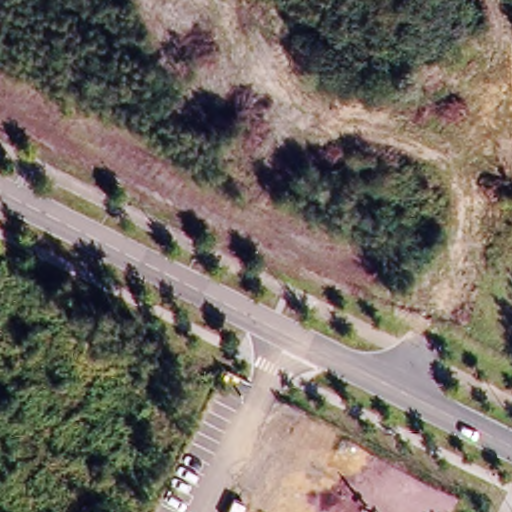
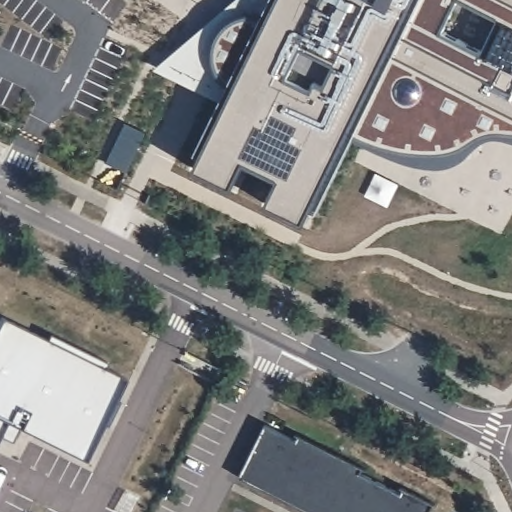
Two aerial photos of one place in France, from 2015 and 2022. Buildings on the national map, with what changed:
new [(512,132),(502,132),(492,133),(477,142),(461,151),(437,154),(410,153),(387,149),(366,142),(350,131),(306,221),(269,202),(282,177),(247,161),(233,186),(197,167),(227,104),(155,69),(236,0),(456,0),(441,31),(483,52),(501,16),(470,0),(512,0),(512,132)]
new [(20,426),(12,440),(0,433),(0,434),(0,323),(3,317),(125,377),(86,457),(20,426)]
new [(426,512),(311,512),(241,477),(266,423),(430,505),(426,512)]

